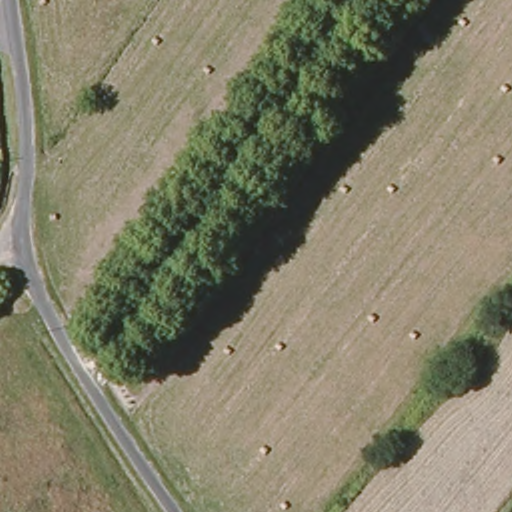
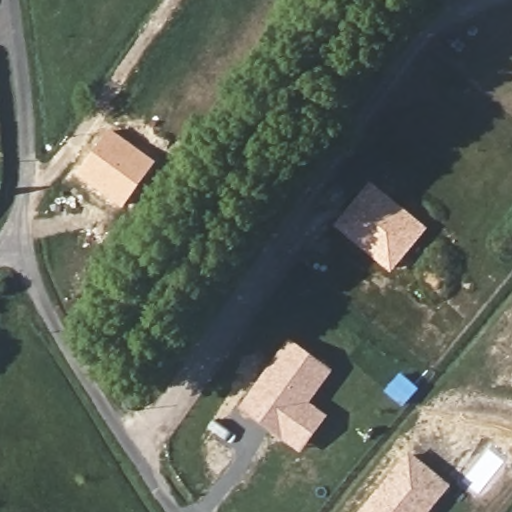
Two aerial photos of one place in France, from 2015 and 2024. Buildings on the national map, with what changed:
new [(122,207),(76,174),(109,127),(156,161),(122,207)]
new [(428,229),(391,273),(333,226),(370,181),(428,229)]
new [(239,407),(289,338),(331,372),(311,402),(328,415),(300,454),(283,441),(239,407)]
new [(408,451),(451,486),(430,512),(359,512),(408,451)]

